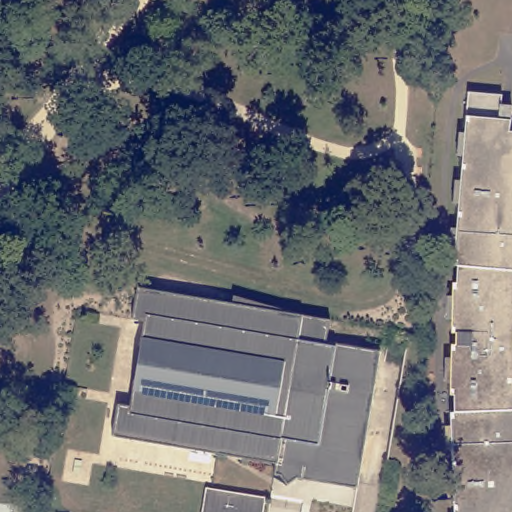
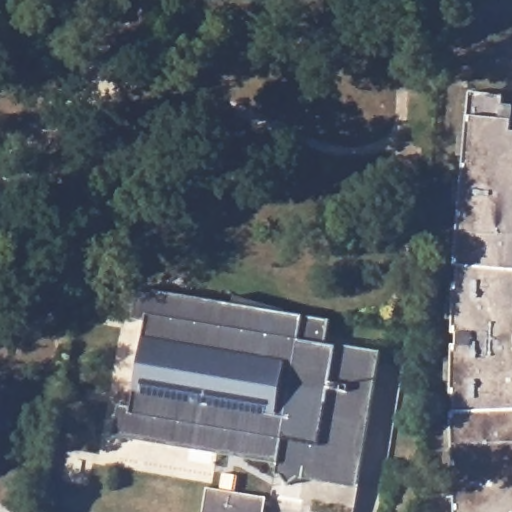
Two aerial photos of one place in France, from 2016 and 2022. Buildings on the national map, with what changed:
unchanged [(466,403),(465,388),(461,388),(458,340),(462,340),(461,328),(457,328),(454,281),(458,280),(457,265),(453,265),(467,91),(501,94),(500,104),(511,105),(509,130),(512,130),(512,512),(460,512),(463,403),(466,403)]
unchanged [(123,400),(136,402),(152,318),(139,316),(145,283),(238,302),(240,293),(306,315),(338,319),(333,343),(387,353),(364,477),(310,467),(308,477),(301,476),(291,483),(285,473),(277,472),(278,462),(118,431),(123,400)]
unchanged [(429,483),(427,493),(416,491),(416,489),(417,484),(418,481),(429,483)]
unchanged [(265,512),(203,512),(207,489),(267,500),(265,512)]

